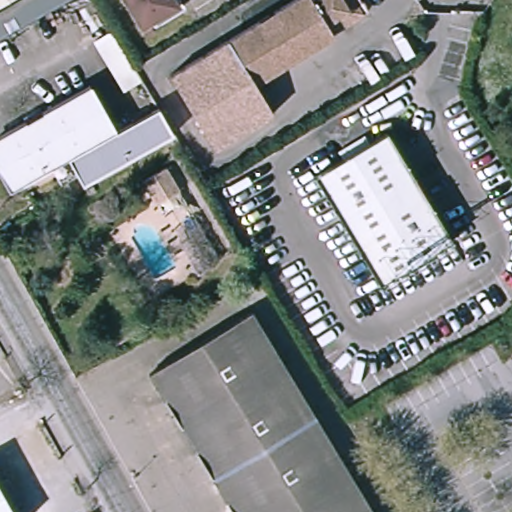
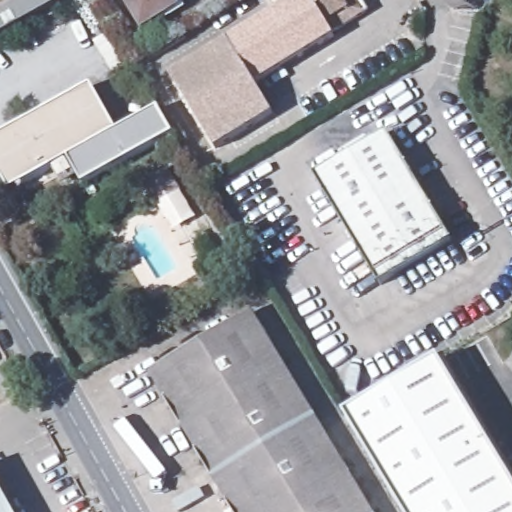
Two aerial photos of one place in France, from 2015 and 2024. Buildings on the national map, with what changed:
unchanged [(0,2),(0,0),(4,0),(0,2)]
unchanged [(139,27),(122,0),(172,0),(176,5),(139,27)]
unchanged [(363,11),(328,32),(330,35),(252,84),(269,113),(211,149),(166,75),(289,0),(356,0),(363,11)]
unchanged [(44,172),(17,187),(0,159),(0,136),(84,88),(110,134),(154,109),(169,135),(78,187),(72,177),(54,188),(44,172)]
unchanged [(449,242),(376,285),(312,177),(386,133),(449,242)]
unchanged [(173,191),(151,202),(139,181),(161,169),(173,191)]
unchanged [(254,312),(373,512),(233,512),(149,372),(254,312)]
new [(439,359),(512,480),(512,512),(404,512),(346,415),(439,359)]
unchanged [(0,512),(0,488),(14,512),(0,512)]

